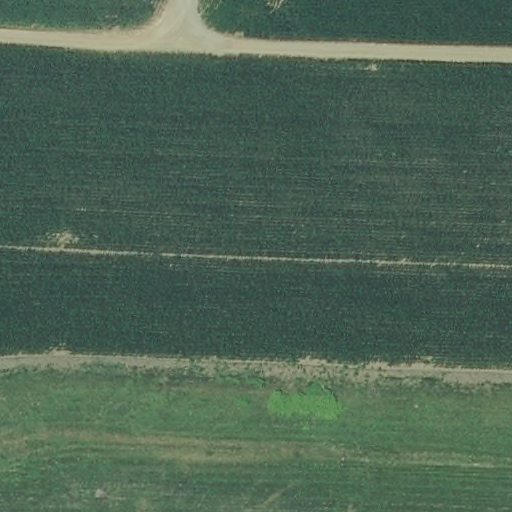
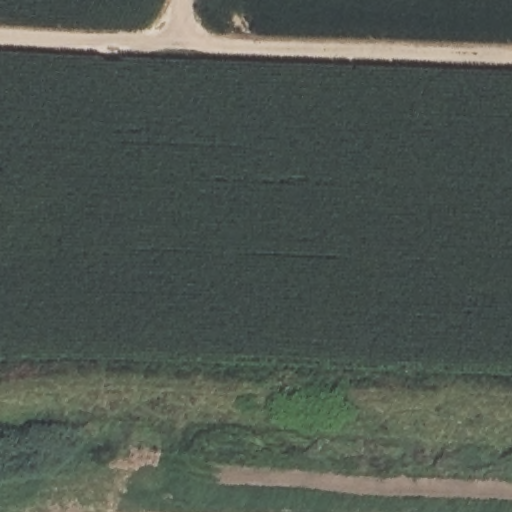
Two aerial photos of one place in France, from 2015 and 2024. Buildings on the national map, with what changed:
[]

